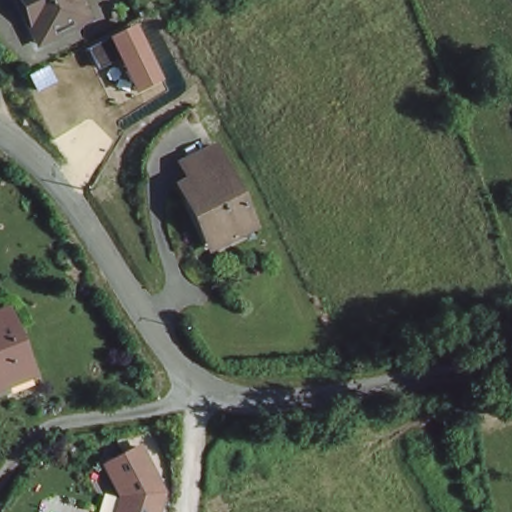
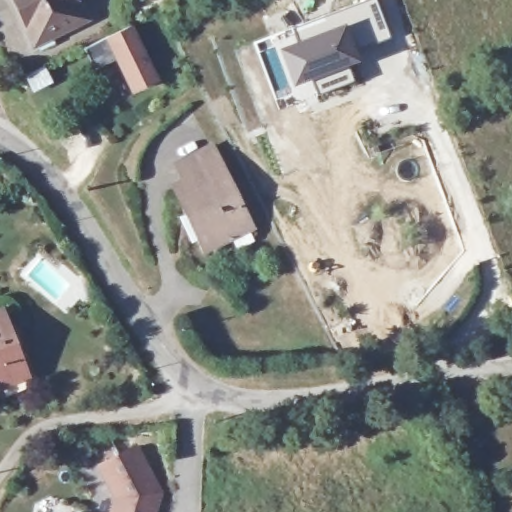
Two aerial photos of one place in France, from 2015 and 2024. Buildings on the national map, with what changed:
unchanged [(83,26),(33,52),(7,0),(71,0),(83,26)]
new [(364,0),(374,0),(389,40),(352,55),(356,66),(341,71),(348,87),(276,115),(248,43),(364,0)]
unchanged [(104,40),(132,26),(160,81),(133,94),(116,62),(97,70),(87,49),(104,40)]
unchanged [(243,229),(201,248),(186,213),(180,217),(170,191),(179,187),(172,169),(206,154),(243,229)]
unchanged [(15,387),(0,392),(0,341),(15,387)]
unchanged [(156,512),(112,512),(115,501),(97,470),(135,452),(153,483),(160,496),(156,512)]

